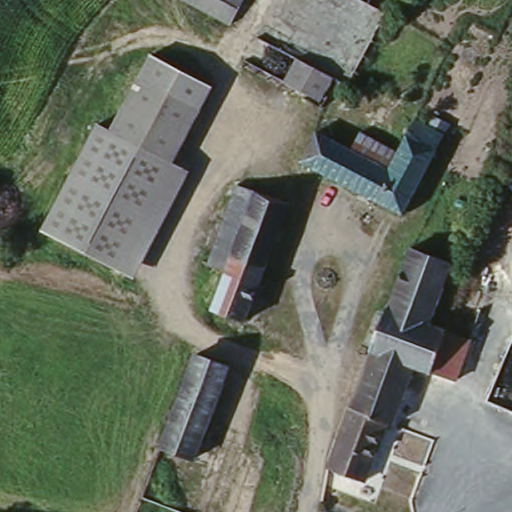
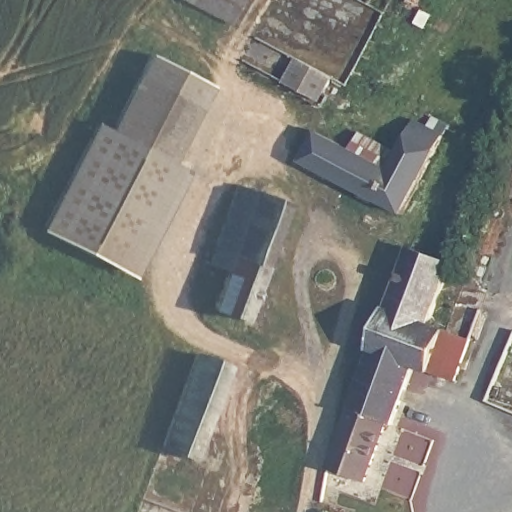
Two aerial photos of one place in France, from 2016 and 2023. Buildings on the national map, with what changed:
unchanged [(176,0),(240,0),(227,27),(176,0)]
unchanged [(315,101),(277,82),(280,77),(289,55),(329,73),(319,94),(315,101)]
unchanged [(129,272),(40,224),(95,118),(109,127),(153,57),(210,86),(129,272)]
unchanged [(296,167),(310,138),(353,158),(364,136),(398,153),(407,136),(414,123),(442,137),(436,148),(397,215),(296,167)]
unchanged [(230,274),(217,274),(245,189),(288,201),(250,323),(219,313),(230,274)]
unchanged [(398,250),(443,266),(421,331),(378,315),(398,250)]
unchanged [(363,357),(378,315),(421,331),(439,335),(422,379),(406,373),(363,357)]
unchanged [(439,335),(466,344),(449,387),(422,379),(439,335)]
unchanged [(178,372),(189,348),(217,359),(185,448),(156,438),(178,372)]
unchanged [(363,357),(406,373),(384,434),(377,431),(359,482),(322,472),(363,357)]

